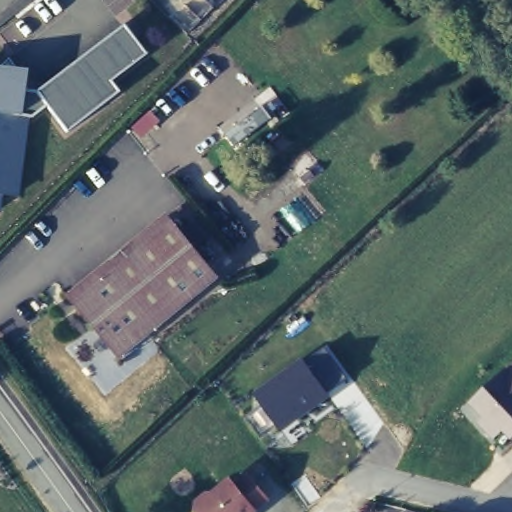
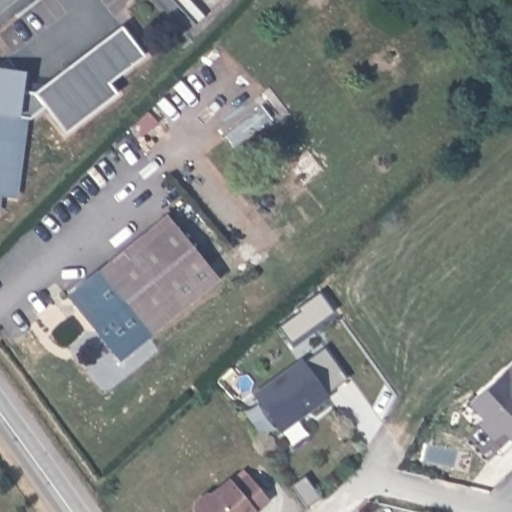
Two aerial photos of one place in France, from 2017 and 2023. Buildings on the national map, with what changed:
unchanged [(115,94),(65,132),(45,106),(31,118),(19,197),(4,196),(2,214),(0,214),(0,67),(23,70),(21,87),(38,88),(123,25),(143,55),(107,82),(115,94)]
unchanged [(217,280),(119,356),(68,295),(165,217),(217,280)]
unchanged [(254,396),(302,361),(323,345),(347,378),(327,395),(330,398),(280,431),(254,396)]
unchanged [(510,440),(502,433),(495,439),(476,421),(479,419),(463,400),(512,359),(512,439),(510,440)]
unchanged [(256,512),(195,512),(245,470),(270,499),(256,512)]

